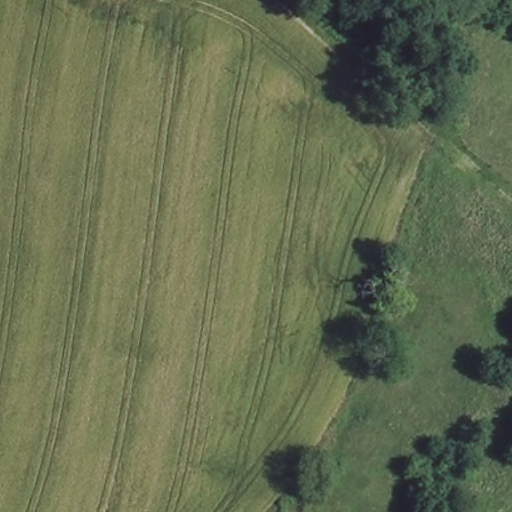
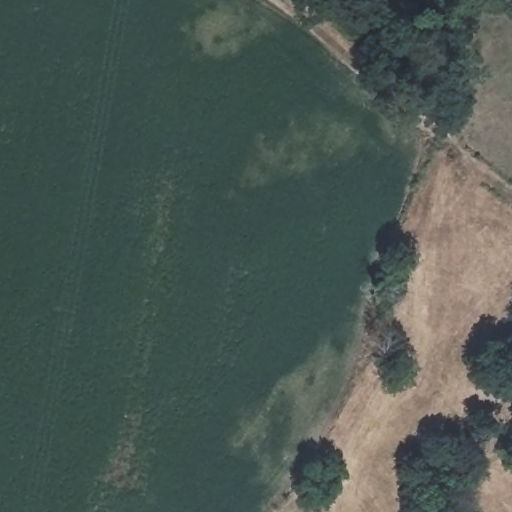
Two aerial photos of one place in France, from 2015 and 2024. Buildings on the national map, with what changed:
[]

